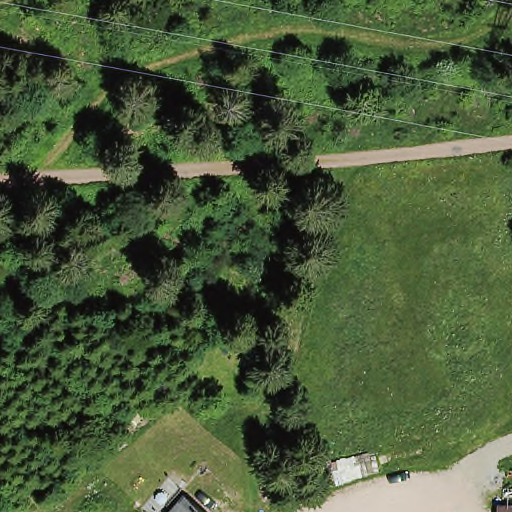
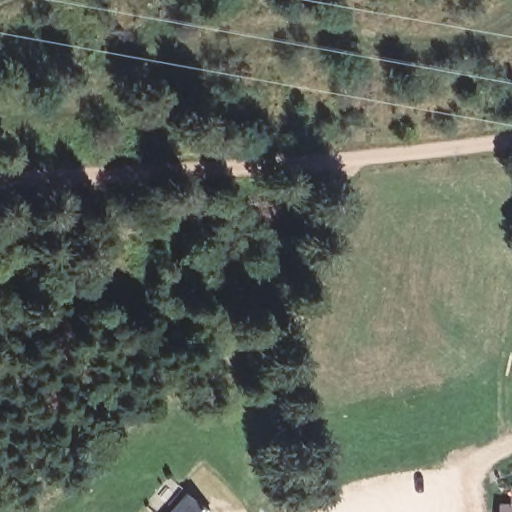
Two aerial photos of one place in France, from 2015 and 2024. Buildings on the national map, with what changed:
unchanged [(200,512),(184,512),(192,504),(200,512)]
unchanged [(497,512),(497,510),(512,511),(512,512),(497,512)]

